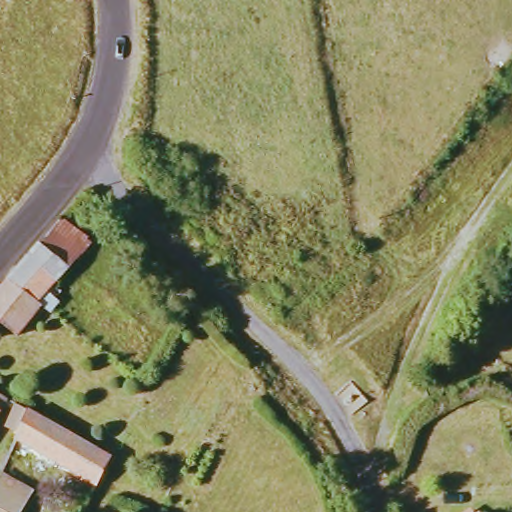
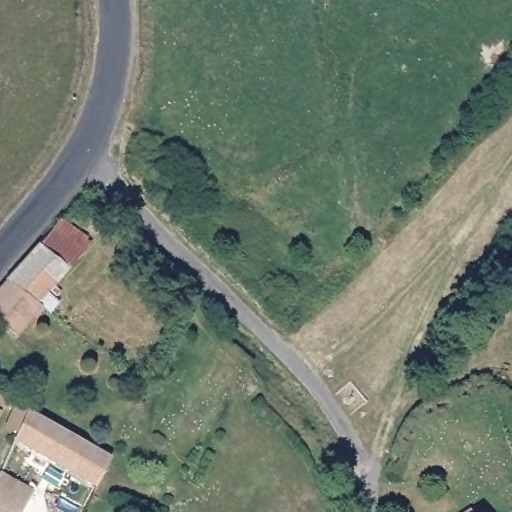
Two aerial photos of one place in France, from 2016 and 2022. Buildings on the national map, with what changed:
unchanged [(64,219),(95,245),(66,277),(36,252),(64,219)]
unchanged [(66,277),(70,280),(43,311),(9,283),(36,252),(66,277)]
unchanged [(480,315),(512,277),(512,314),(497,330),(480,315)]
unchanged [(16,341),(0,329),(0,293),(9,283),(43,311),(16,341)]
unchanged [(0,422),(0,397),(11,402),(0,422)]
unchanged [(16,441),(18,437),(8,432),(16,410),(27,414),(114,463),(100,488),(16,441)]
unchanged [(1,483),(32,499),(29,506),(26,512),(0,512),(0,485),(1,483)]

